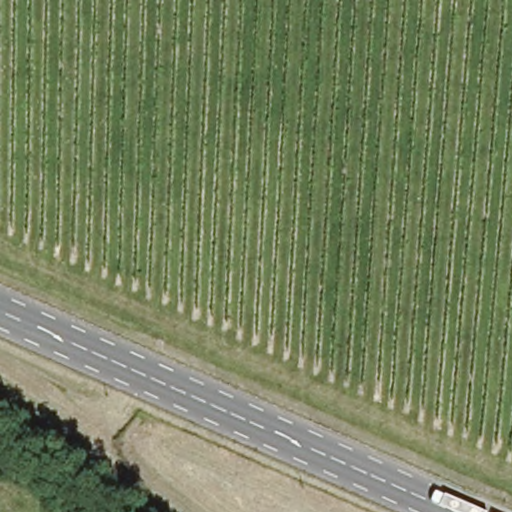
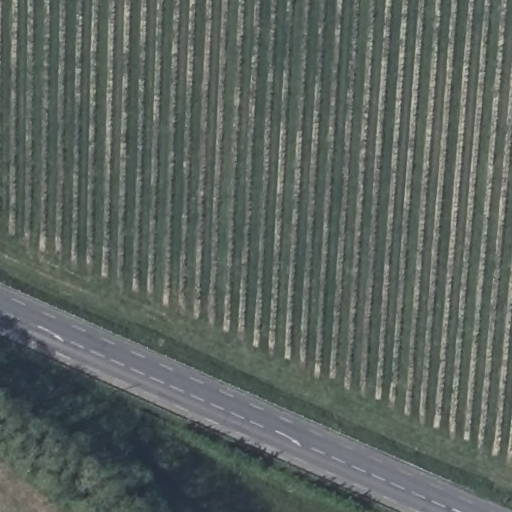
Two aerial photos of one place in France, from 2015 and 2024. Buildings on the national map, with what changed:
[]

